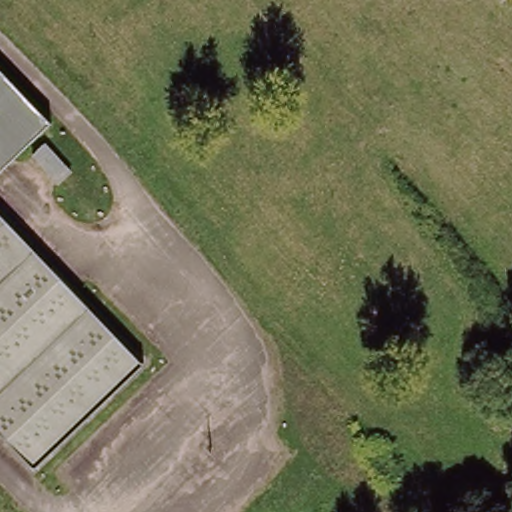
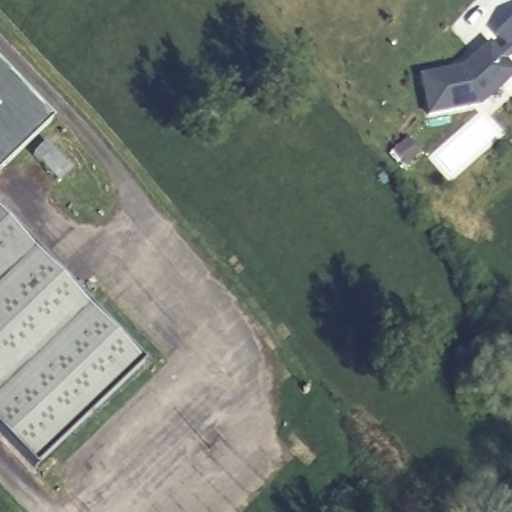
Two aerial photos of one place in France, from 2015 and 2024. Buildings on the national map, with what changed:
new [(512,78),(479,106),(427,117),(420,77),(462,67),(489,44),(512,70),(512,78)]
unchanged [(40,114),(0,152),(0,69),(40,114)]
unchanged [(40,114),(50,125),(0,172),(0,152),(40,114)]
unchanged [(75,167),(60,180),(35,152),(50,139),(75,167)]
unchanged [(138,364),(93,406),(25,468),(0,440),(0,212),(138,364)]

